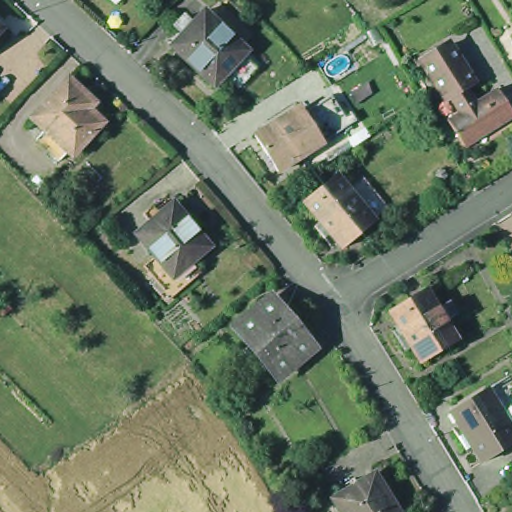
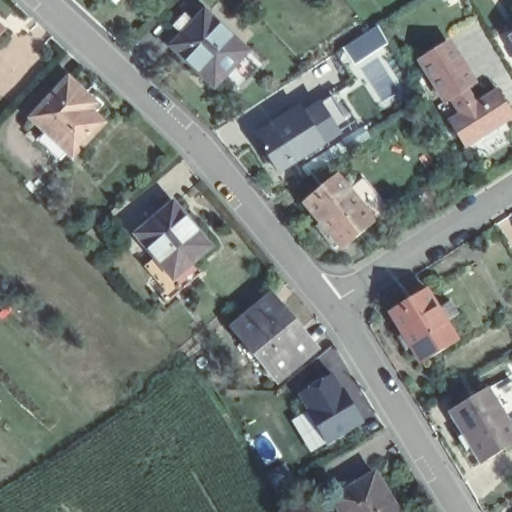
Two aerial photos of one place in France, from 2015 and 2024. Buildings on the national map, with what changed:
unchanged [(230,86),(220,77),(210,87),(167,48),(180,35),(172,28),(180,20),(187,27),(200,14),(242,54),(233,63),(243,72),(230,86)]
unchanged [(512,32),(512,44),(507,35),(512,32)]
unchanged [(468,141),(463,144),(438,103),(450,95),(425,57),(453,41),(476,79),(466,85),(477,101),(499,88),(512,109),(512,116),(511,116),(512,117),(512,125),(473,147),(468,141)]
unchanged [(42,135),(50,126),(38,115),(75,76),(90,90),(100,100),(93,106),(108,120),(77,152),(73,147),(65,155),(42,135)]
unchanged [(251,142),(267,132),(266,130),(280,121),(301,107),(304,111),(320,100),(341,135),(320,151),(275,179),(251,142)]
unchanged [(310,227),(315,222),(300,204),(333,175),(346,190),(358,180),(382,209),(370,220),(371,222),(339,250),(327,236),(321,240),(310,227)]
unchanged [(170,291),(159,278),(160,276),(148,261),(157,254),(137,230),(152,217),(145,209),(155,202),(161,210),(175,199),(210,244),(191,260),(197,268),(170,291)]
unchanged [(393,333),(398,330),(385,308),(422,286),(434,305),(445,298),(453,313),(442,319),(453,337),(416,360),(407,345),(402,348),(393,333)]
unchanged [(238,349),(247,341),(233,325),(267,296),(281,313),(286,309),(300,327),(295,331),(307,346),(274,374),(260,357),(251,365),(238,349)]
new [(365,423),(326,445),(304,411),(308,408),(299,393),(334,372),(365,423)]
unchanged [(463,429),(450,407),(488,385),(512,426),(512,442),(481,460),(471,443),(465,446),(457,432),(463,429)]
unchanged [(396,512),(339,512),(330,496),(336,492),(331,486),(348,475),(352,482),(371,471),(396,512)]

